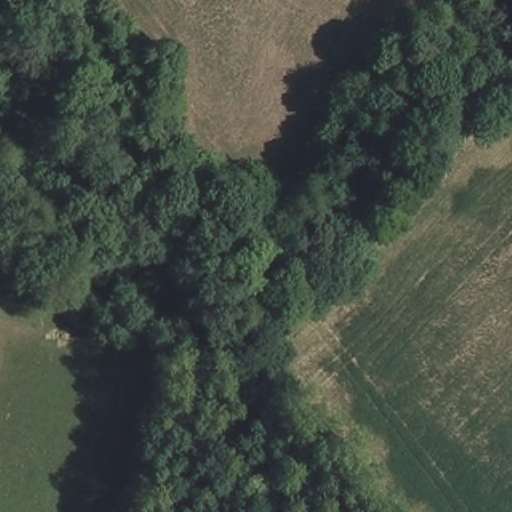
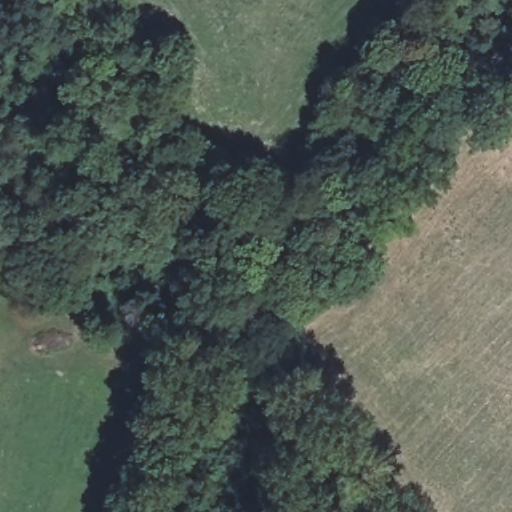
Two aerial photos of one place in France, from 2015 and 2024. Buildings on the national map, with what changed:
[]

